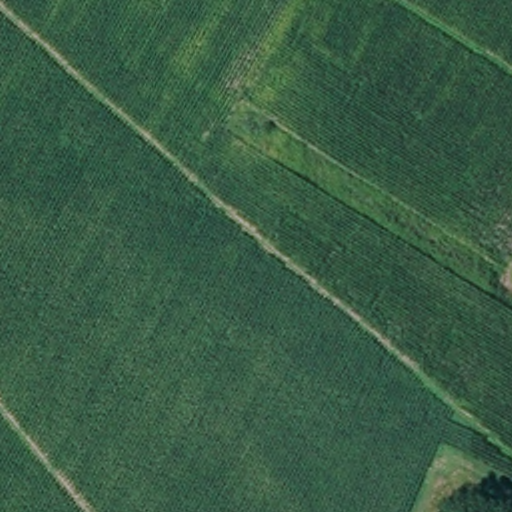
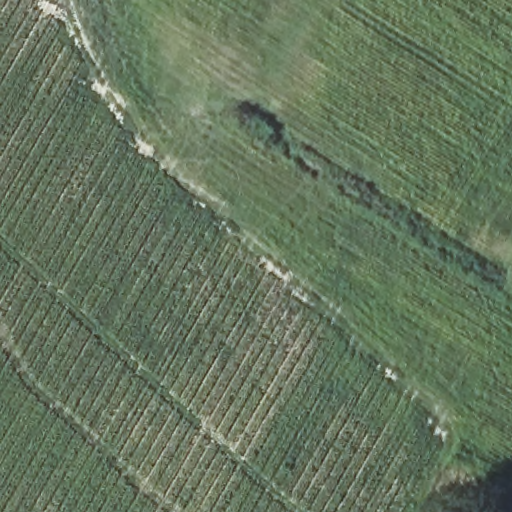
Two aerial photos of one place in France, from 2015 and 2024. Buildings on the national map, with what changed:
[]

